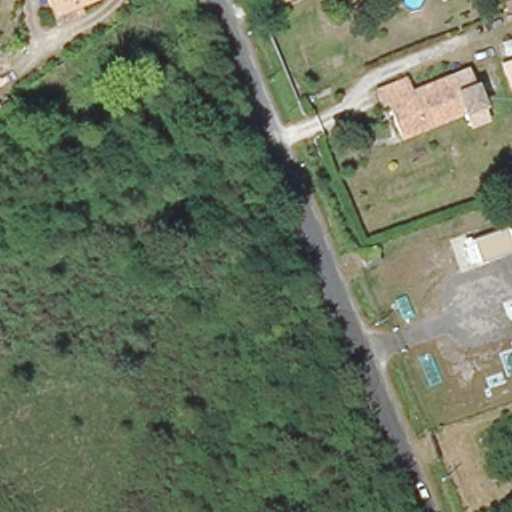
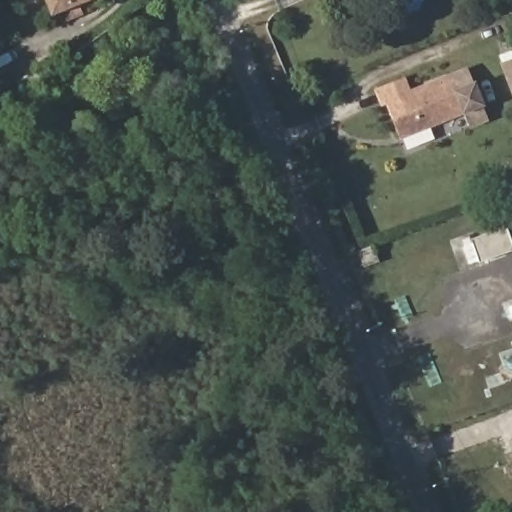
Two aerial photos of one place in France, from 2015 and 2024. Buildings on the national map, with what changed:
unchanged [(49,0),(79,0),(54,10),(49,0)]
unchanged [(508,9),(504,0),(512,0),(512,8),(508,9)]
unchanged [(500,61),(512,57),(512,95),(500,61)]
unchanged [(381,105),(375,90),(404,79),(410,92),(448,77),(467,69),(487,118),(468,125),(462,112),(399,137),(385,103),(381,105)]
unchanged [(469,237),(505,224),(512,246),(512,247),(477,259),(469,237)]
unchanged [(378,250),(363,255),(358,239),(373,234),(378,250)]

